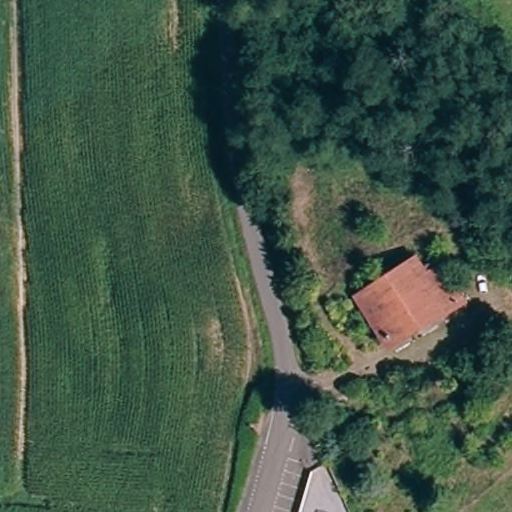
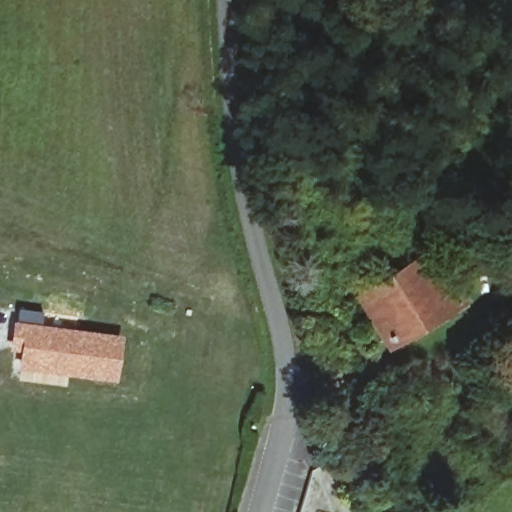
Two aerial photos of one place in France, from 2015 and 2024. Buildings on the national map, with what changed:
unchanged [(428,283),(446,309),(388,347),(356,298),(412,260),(428,283)]
new [(44,316),(41,332),(120,343),(115,382),(22,370),(25,351),(14,350),(16,330),(19,312),(44,316)]

